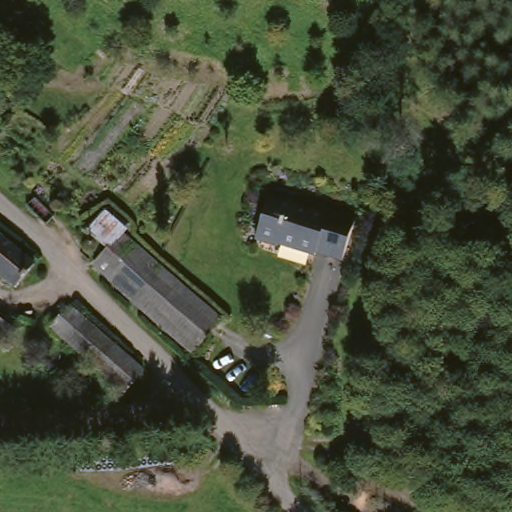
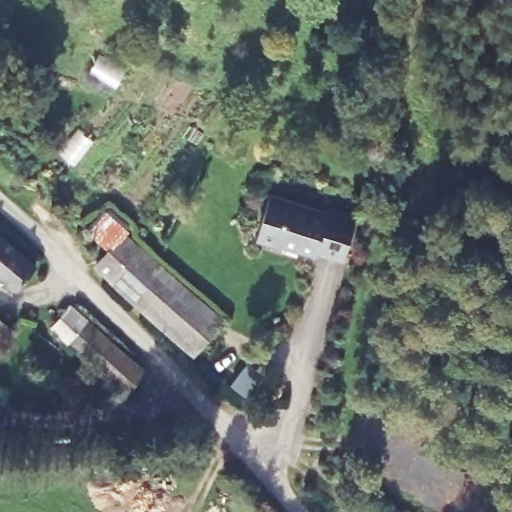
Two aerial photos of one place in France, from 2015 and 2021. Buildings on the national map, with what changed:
unchanged [(346,260),(317,252),(311,258),(251,239),(264,198),(326,216),(329,211),(356,219),(346,260)]
unchanged [(191,353),(188,350),(97,267),(111,250),(91,232),(108,212),(126,227),(121,233),(124,236),(221,316),(191,353)]
unchanged [(34,265),(16,289),(0,278),(0,240),(34,265)]
unchanged [(143,374),(126,395),(53,331),(69,309),(143,374)]
unchanged [(11,328),(0,340),(0,320),(11,328)]

